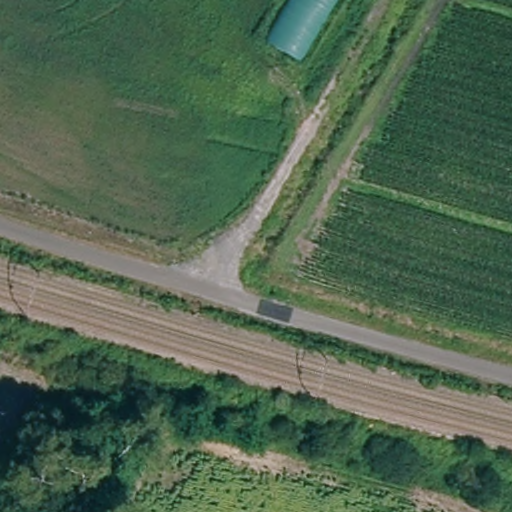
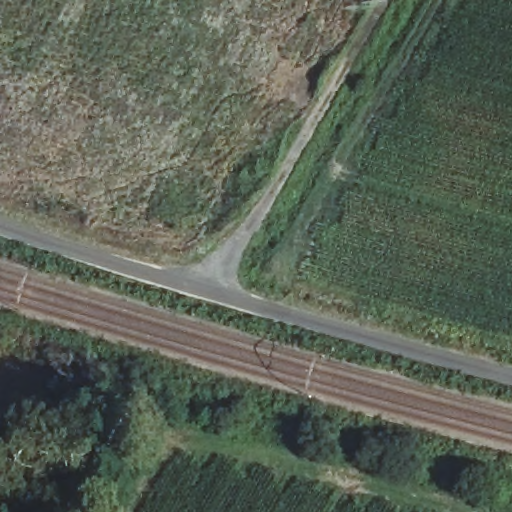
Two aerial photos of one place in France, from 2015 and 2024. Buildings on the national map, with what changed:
demolished [(292,67),(255,44),(282,0),(334,0),(292,67)]

